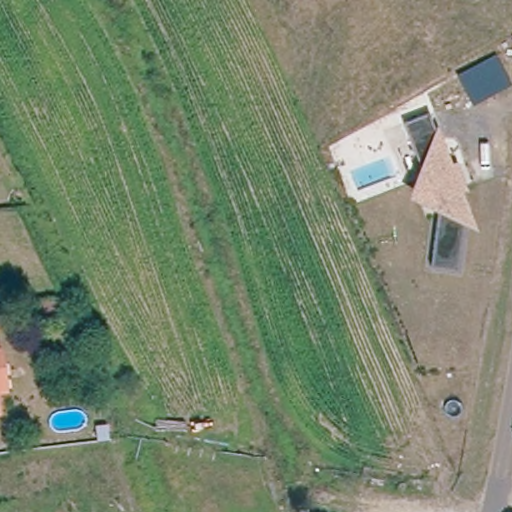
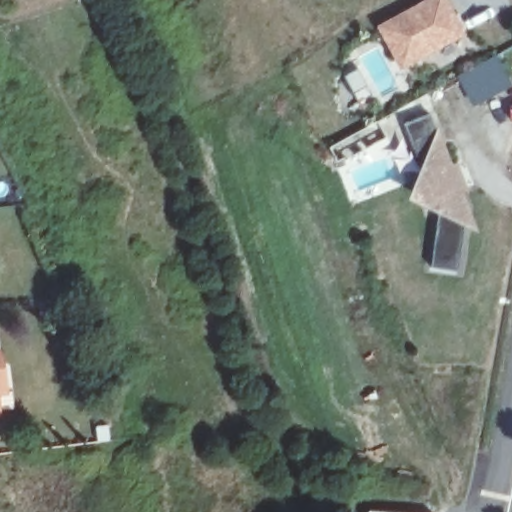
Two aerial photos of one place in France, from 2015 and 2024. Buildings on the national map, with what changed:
new [(443,2),(465,40),(405,75),(383,37),(443,2)]
unchanged [(457,75),(496,55),(511,84),(472,105),(457,75)]
unchanged [(462,190),(470,209),(462,269),(435,265),(441,213),(407,198),(421,164),(427,177),(405,124),(430,113),(453,168),(457,166),(466,189),(462,190)]

